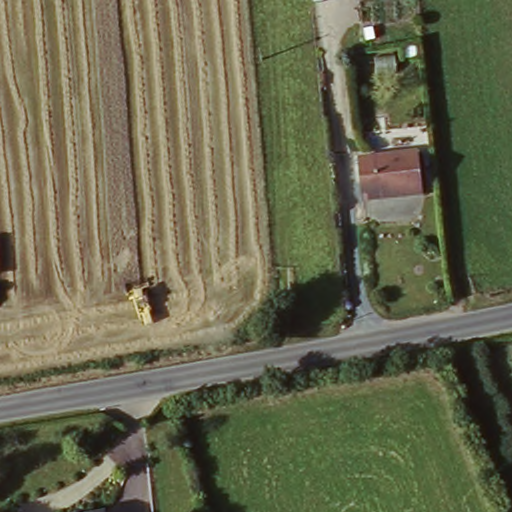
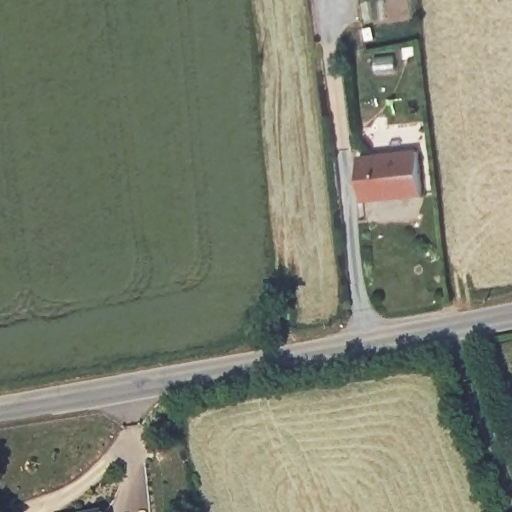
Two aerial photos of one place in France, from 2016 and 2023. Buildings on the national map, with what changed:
unchanged [(416,150),(420,189),(363,197),(358,160),(416,150)]

